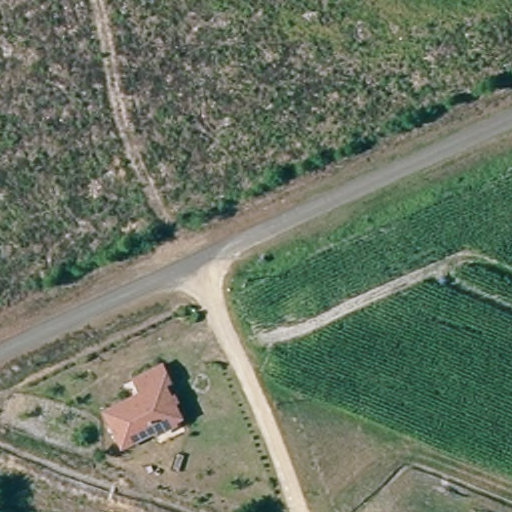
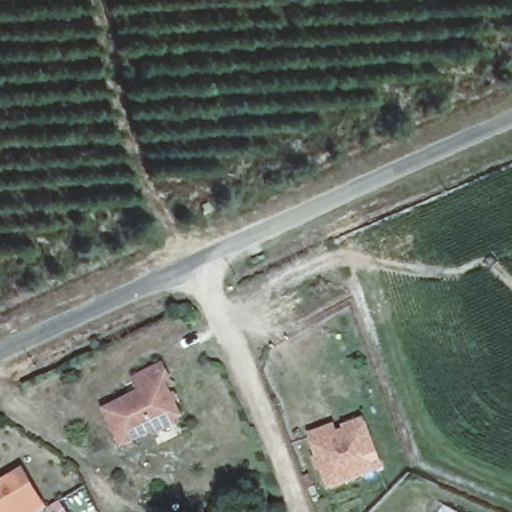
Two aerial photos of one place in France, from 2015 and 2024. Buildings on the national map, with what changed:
unchanged [(189,413),(125,444),(109,410),(145,391),(139,378),(171,362),(178,377),(172,380),(189,413)]
new [(339,431),(345,429),(344,425),(367,416),(387,470),(330,491),(322,469),(318,470),(314,458),(318,456),(309,433),(336,423),(339,431)]
new [(26,466),(49,507),(40,512),(0,512),(0,481),(26,466)]

